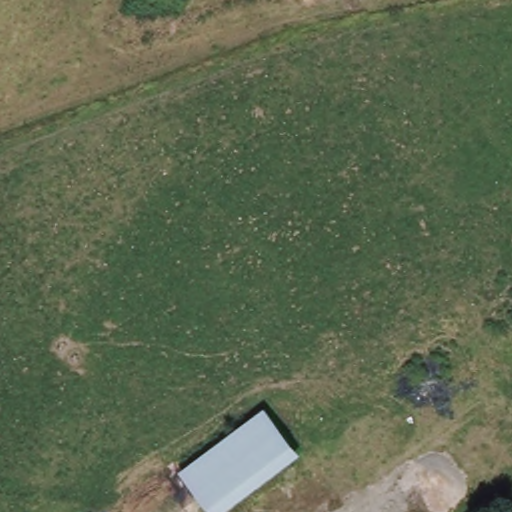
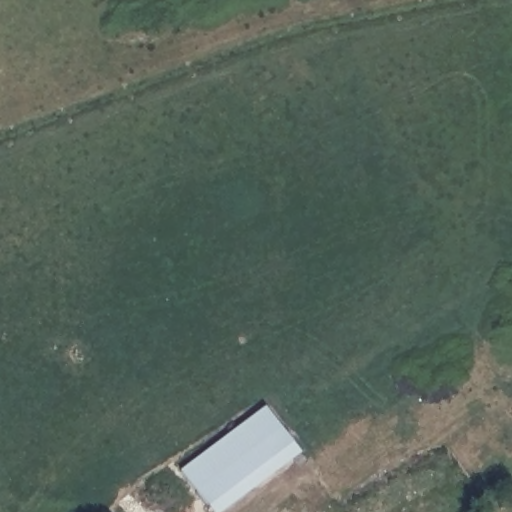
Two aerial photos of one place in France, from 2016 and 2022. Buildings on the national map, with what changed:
unchanged [(220,512),(212,512),(176,474),(265,408),(297,455),(220,512)]

